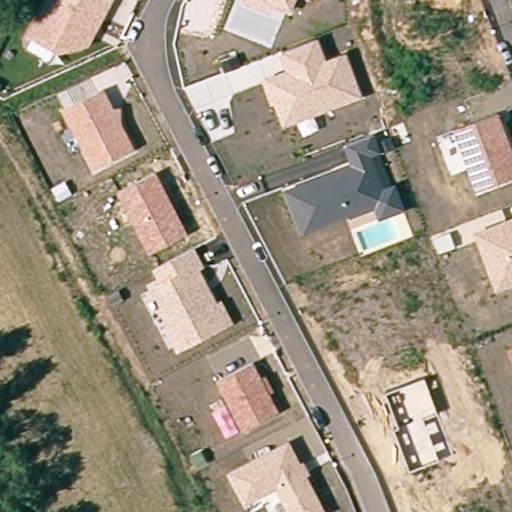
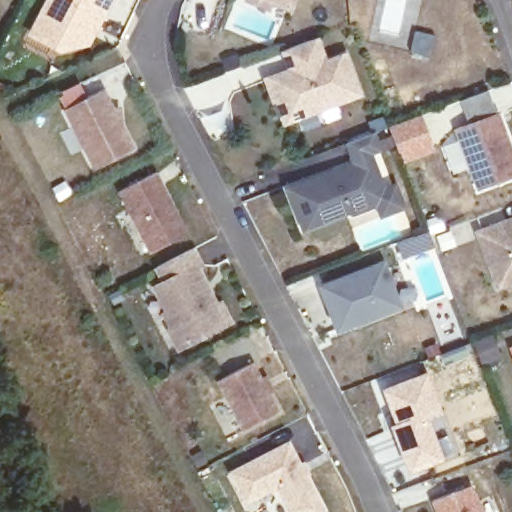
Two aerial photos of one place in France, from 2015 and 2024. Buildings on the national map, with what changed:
unchanged [(59,53),(25,34),(44,0),(115,0),(91,46),(59,53)]
unchanged [(293,9),(291,13),(272,5),(269,12),(242,1),(242,0),(296,0),(293,9)]
unchanged [(283,126),(274,102),(271,103),(262,78),(286,70),(279,52),(319,38),(327,56),(348,49),(364,96),(283,126)]
unchanged [(62,110),(105,88),(136,148),(93,169),(62,110)]
unchanged [(453,128),(500,111),(512,146),(512,177),(475,189),(453,128)]
new [(402,164),(389,126),(422,114),(435,151),(402,164)]
unchanged [(302,232),(284,188),(352,163),(345,145),(377,133),(384,150),(374,155),(386,185),(396,181),(407,208),(379,219),(374,207),(351,216),(349,213),(302,232)]
unchanged [(118,191),(157,172),(188,234),(149,254),(118,191)]
unchanged [(473,230),(512,217),(512,285),(494,291),(473,230)]
unchanged [(176,352),(158,312),(162,309),(151,286),(160,280),(154,266),(197,247),(207,267),(202,270),(218,301),(222,298),(234,323),(176,352)]
new [(394,265),(411,308),(349,332),(333,289),(394,265)]
unchanged [(508,346),(512,344),(512,359),(508,346)]
unchanged [(215,381),(254,363),(279,412),(241,431),(215,381)]
unchanged [(391,426),(394,424),(382,388),(427,372),(442,412),(428,417),(443,459),(408,472),(391,426)]
unchanged [(244,503),(228,471),(290,441),(326,512),(288,512),(277,489),(244,503)]
new [(480,512),(437,512),(434,504),(472,490),(480,512)]

